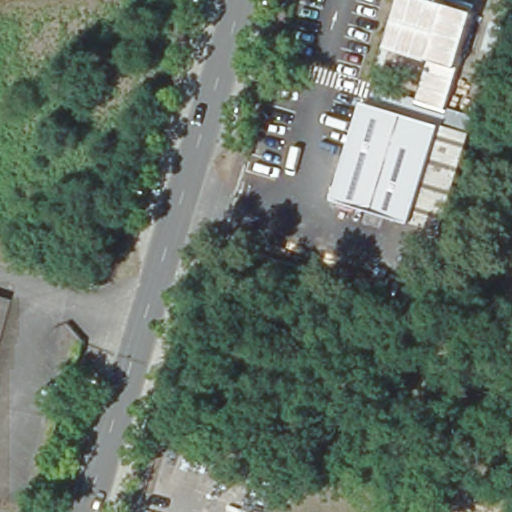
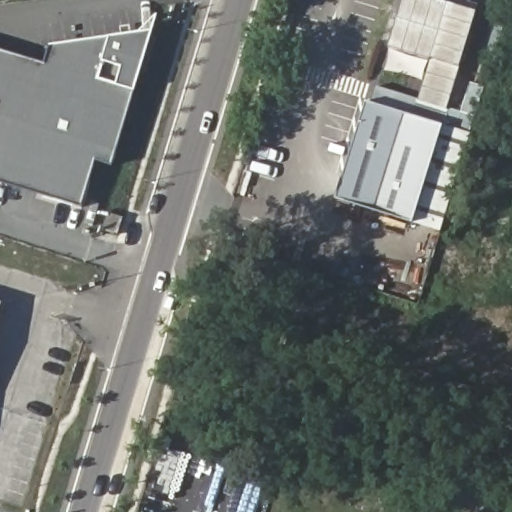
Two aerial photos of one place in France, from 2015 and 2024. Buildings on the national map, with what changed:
unchanged [(417,99),(427,65),(417,61),(387,52),(401,9),(430,18),(472,31),(447,115),(442,130),(371,107),(377,86),(417,99)]
new [(95,160),(81,207),(0,182),(0,49),(46,63),(52,44),(154,29),(112,165),(95,160)]
unchanged [(371,107),(442,130),(413,224),(337,199),(366,106),(371,107)]
unchanged [(463,136),(435,231),(413,224),(442,130),(463,136)]

